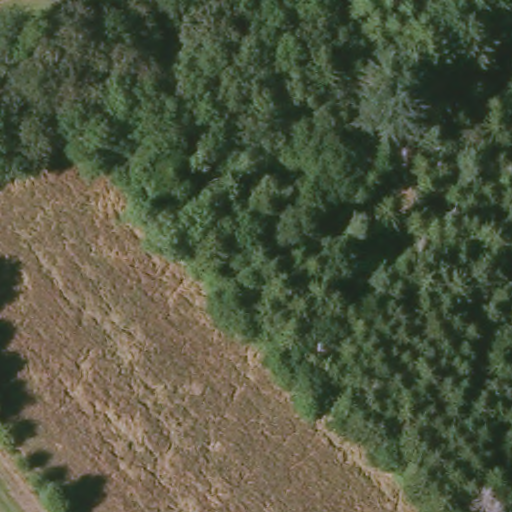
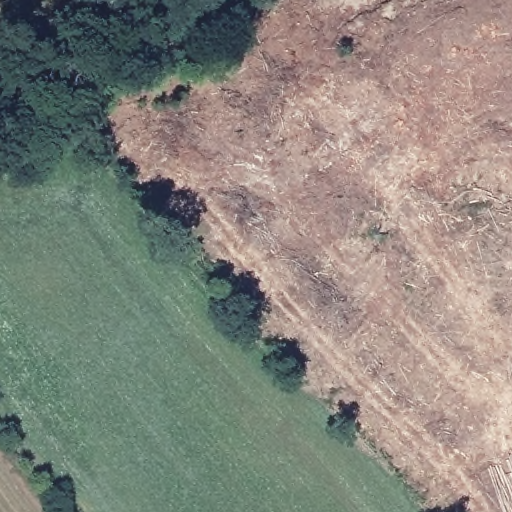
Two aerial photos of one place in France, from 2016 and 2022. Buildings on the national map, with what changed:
[]

